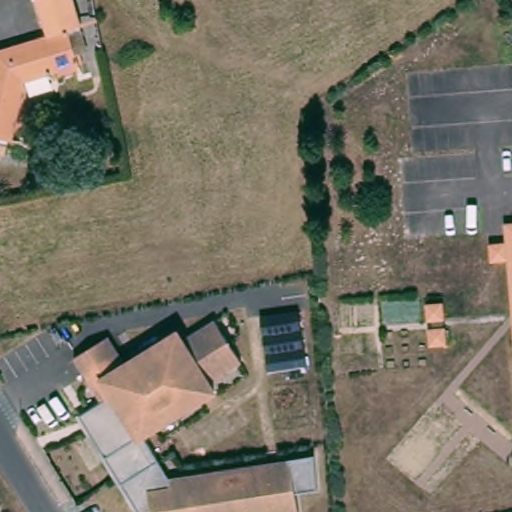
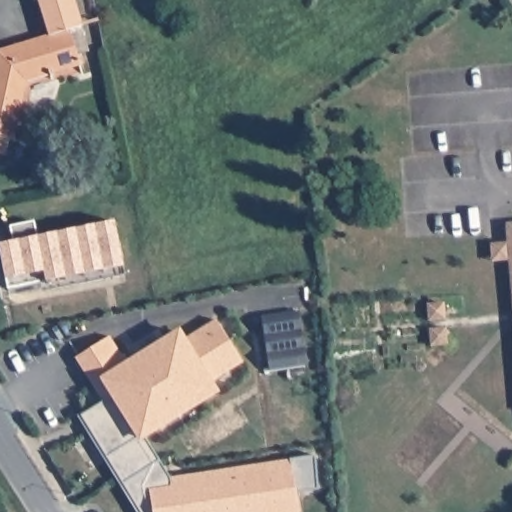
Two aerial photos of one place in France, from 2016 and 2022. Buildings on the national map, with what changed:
unchanged [(50,39),(41,0),(76,0),(86,32),(70,36),(80,70),(26,86),(14,144),(12,152),(0,149),(0,54),(50,39)]
new [(122,264),(45,280),(7,288),(0,252),(0,244),(12,241),(9,225),(32,221),(37,238),(114,221),(122,264)]
unchanged [(512,258),(493,259),(492,243),(510,242),(508,223),(512,223),(512,258)]
unchanged [(447,315),(430,317),(428,302),(445,301),(447,315)]
unchanged [(271,370),(263,315),(302,310),(309,365),(271,370)]
unchanged [(89,429),(79,413),(88,408),(102,399),(75,354),(101,338),(110,333),(127,362),(179,329),(184,338),(217,318),(243,361),(210,381),(216,389),(143,433),(170,476),(289,459),(316,455),(318,490),(296,493),(298,511),(299,512),(139,512),(89,429)]
unchanged [(450,340),(433,342),(432,325),(447,324),(450,340)]

